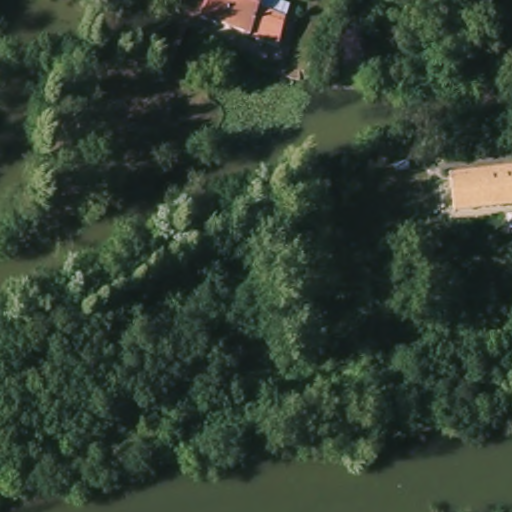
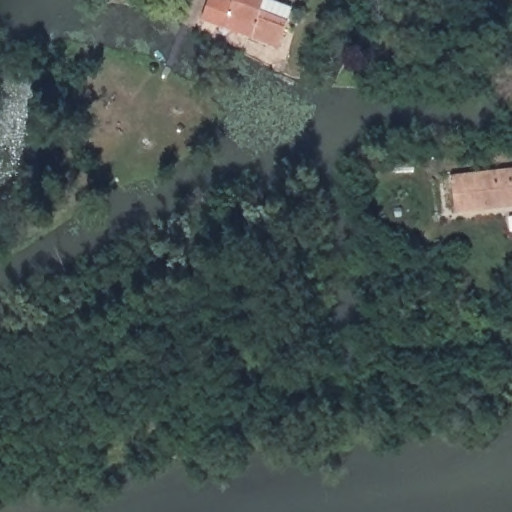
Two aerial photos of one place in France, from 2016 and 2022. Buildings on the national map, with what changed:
unchanged [(295,57),(247,44),(220,33),(229,10),(246,15),(250,12),(303,28),(295,57)]
unchanged [(490,213),(445,218),(442,181),(512,170),(512,209),(490,213)]

